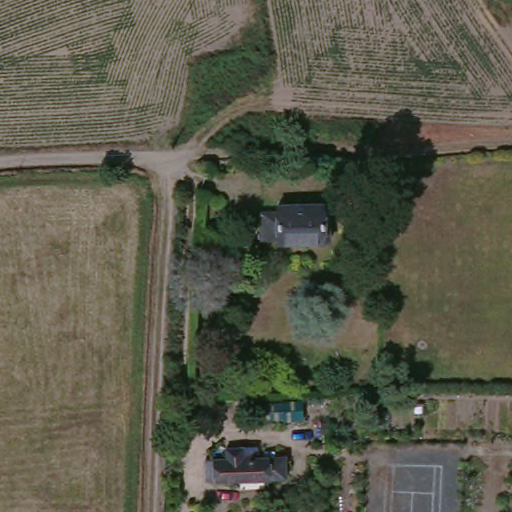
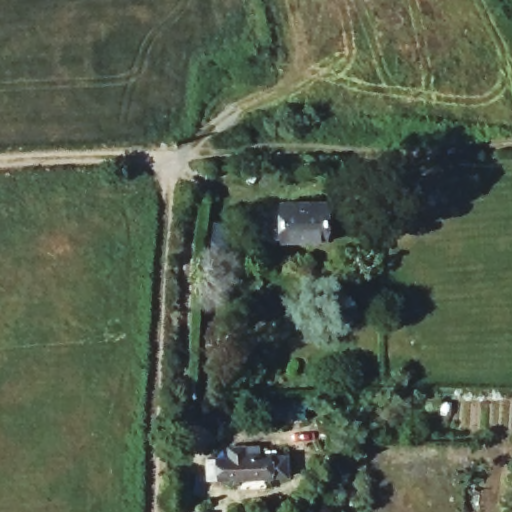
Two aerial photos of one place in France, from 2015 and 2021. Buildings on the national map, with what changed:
unchanged [(266,235),(266,209),(284,209),(284,201),(332,202),(333,235),(266,235)]
unchanged [(257,412),(258,398),(288,398),(287,406),(295,407),(295,415),(257,412)]
unchanged [(239,486),(239,492),(231,492),(230,486),(204,484),(204,462),(224,462),(224,452),(239,452),(239,462),(284,463),(284,487),(239,486)]

